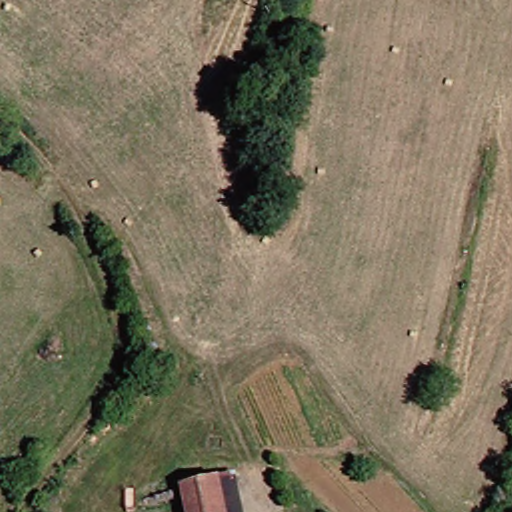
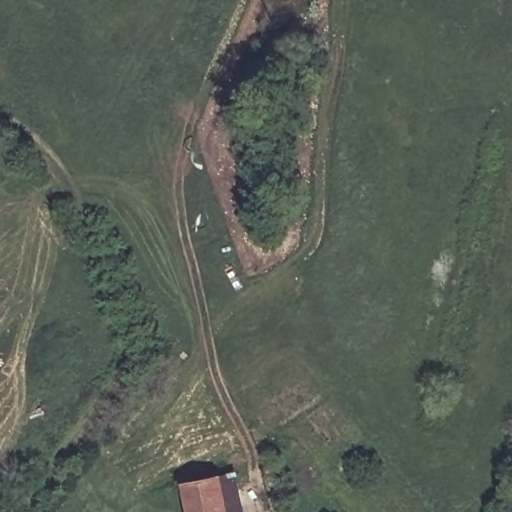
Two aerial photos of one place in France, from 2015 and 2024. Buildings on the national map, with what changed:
unchanged [(238,512),(202,512),(197,483),(233,476),(238,512)]

